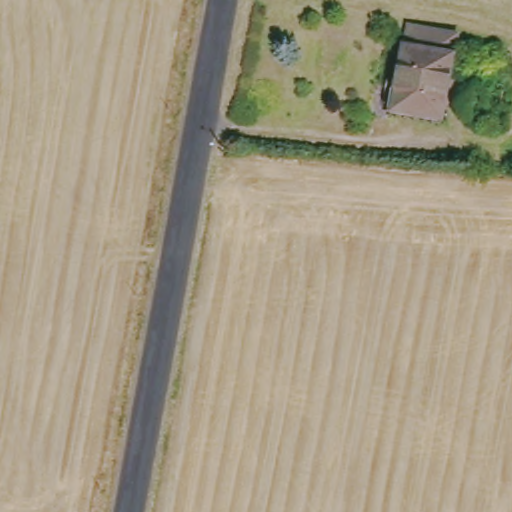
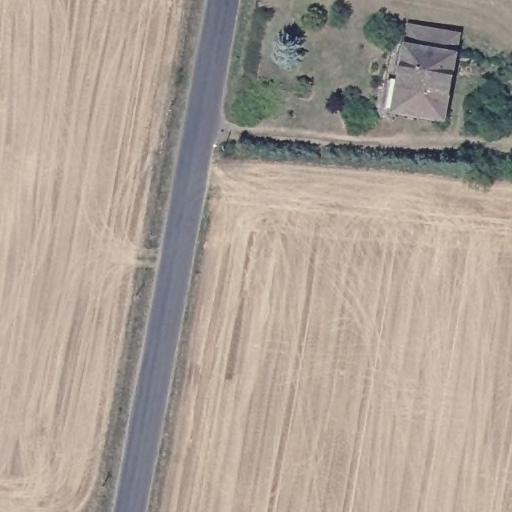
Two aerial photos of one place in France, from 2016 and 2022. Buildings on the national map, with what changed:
unchanged [(439,115),(390,106),(404,26),(451,34),(439,115)]

